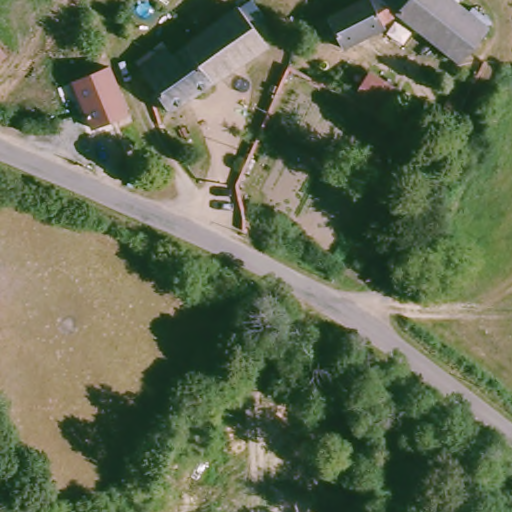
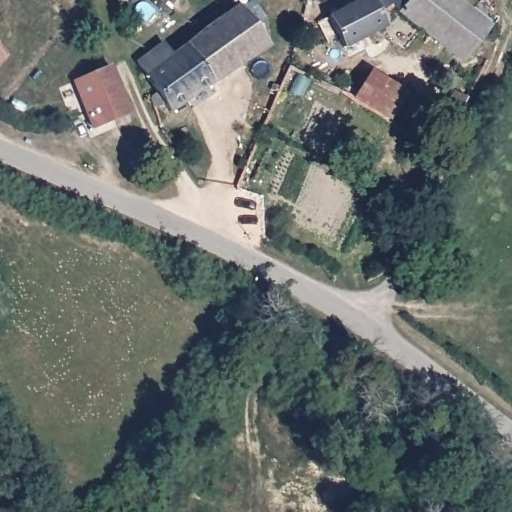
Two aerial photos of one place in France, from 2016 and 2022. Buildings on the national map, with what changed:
unchanged [(370,0),(463,0),(498,27),(468,63),(407,16),(387,27),(390,31),(347,54),(337,40),(325,46),(315,29),(370,0)]
unchanged [(173,33),(183,45),(243,6),(270,47),(172,109),(169,104),(158,109),(150,97),(159,92),(140,61),(173,33)]
unchanged [(0,67),(0,49),(8,59),(0,67)]
unchanged [(130,119),(91,129),(77,83),(114,68),(130,119)]
unchanged [(374,75),(408,98),(393,119),(359,97),(374,75)]
unchanged [(440,90),(447,78),(462,85),(445,112),(445,111),(440,90)]

